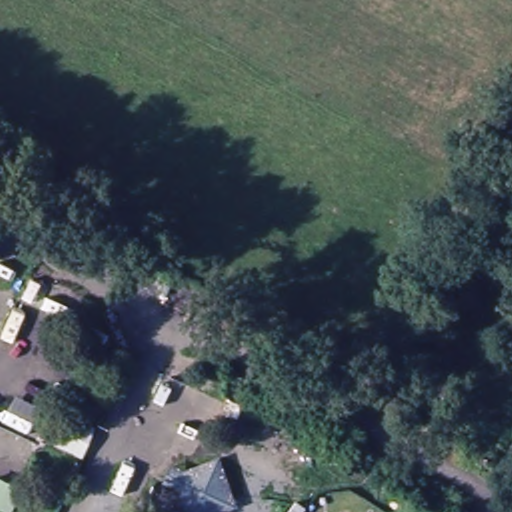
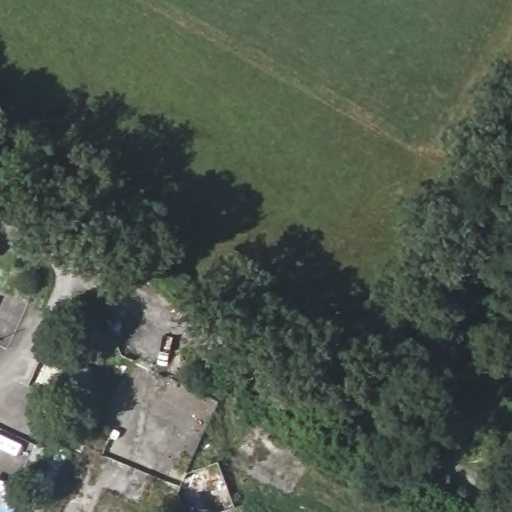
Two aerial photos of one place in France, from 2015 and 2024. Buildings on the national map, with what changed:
unchanged [(219,458),(237,507),(224,512),(182,512),(172,487),(161,482),(170,465),(182,471),(219,458)]

